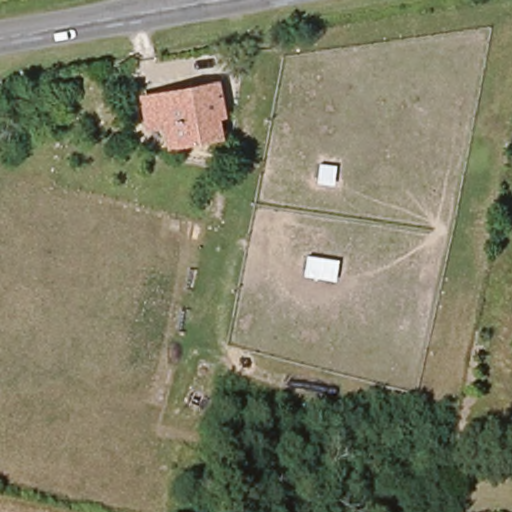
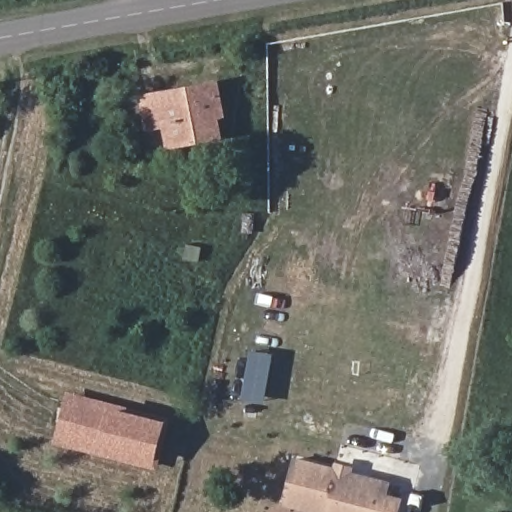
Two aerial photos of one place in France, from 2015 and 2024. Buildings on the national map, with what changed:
unchanged [(145,128),(140,96),(217,84),(222,117),(213,118),(215,138),(169,145),(166,125),(145,128)]
new [(54,443),(68,391),(171,418),(158,471),(54,443)]
new [(294,456),(334,466),(335,462),(354,466),(353,471),(392,481),(389,494),(403,497),(399,512),(309,512),(282,505),(294,456)]

